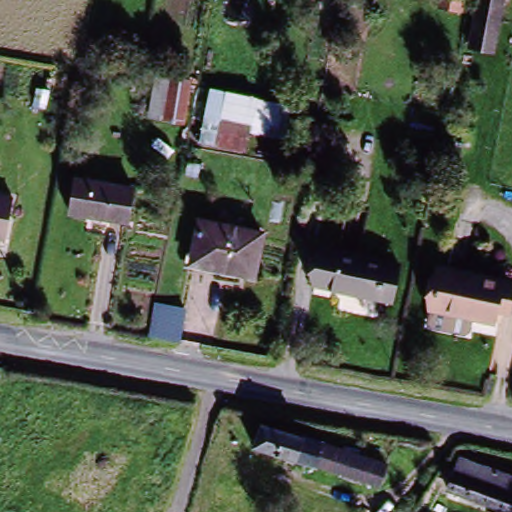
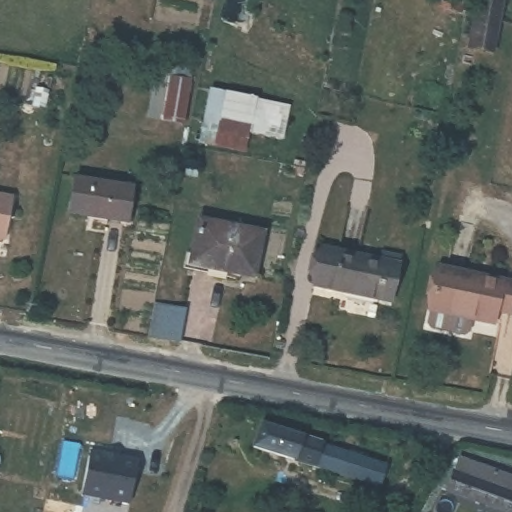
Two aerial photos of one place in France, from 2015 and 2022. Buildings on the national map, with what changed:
unchanged [(460,12),(442,9),(444,0),(463,0),(460,12)]
unchanged [(470,44),(472,34),(479,0),(503,0),(495,37),(492,50),(470,44)]
unchanged [(146,118),(156,62),(173,64),(191,67),(180,125),(164,121),(146,118)]
unchanged [(284,145),(204,132),(211,90),(291,102),(284,145)]
unchanged [(80,178),(138,190),(130,226),(73,215),(80,178)]
unchanged [(15,195),(6,239),(0,238),(0,193),(15,195)]
unchanged [(201,218),(266,231),(255,275),(192,262),(201,218)]
unchanged [(395,302),(382,300),(318,288),(325,254),(389,266),(401,269),(395,302)]
unchanged [(493,306),(490,317),(426,305),(435,262),(501,276),(512,278),(512,289),(507,309),(493,306)]
unchanged [(380,455),(373,481),(250,446),(256,421),(380,455)]
demolished [(100,448),(130,460),(113,512),(80,512),(92,472),(100,448)]
new [(138,460),(130,504),(80,497),(89,452),(138,460)]
unchanged [(460,455),(512,476),(512,506),(451,481),(460,455)]

